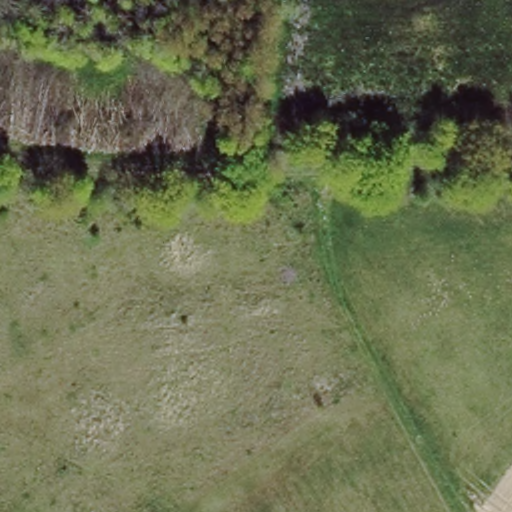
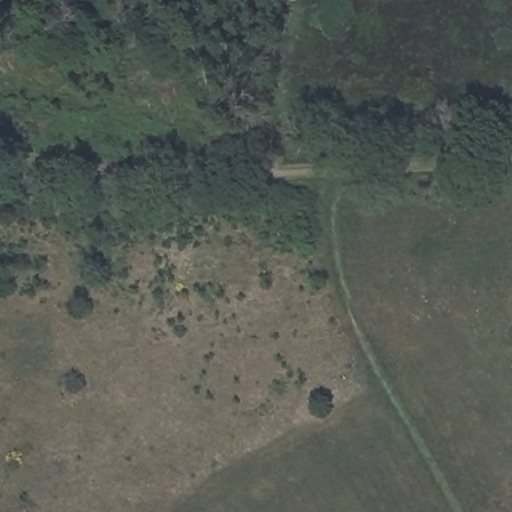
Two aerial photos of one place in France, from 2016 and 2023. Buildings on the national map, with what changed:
[]

